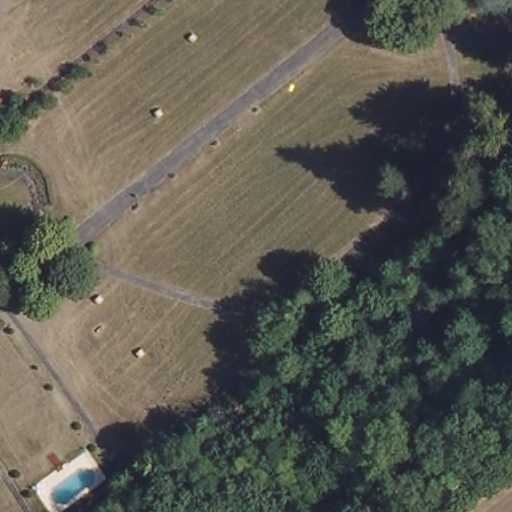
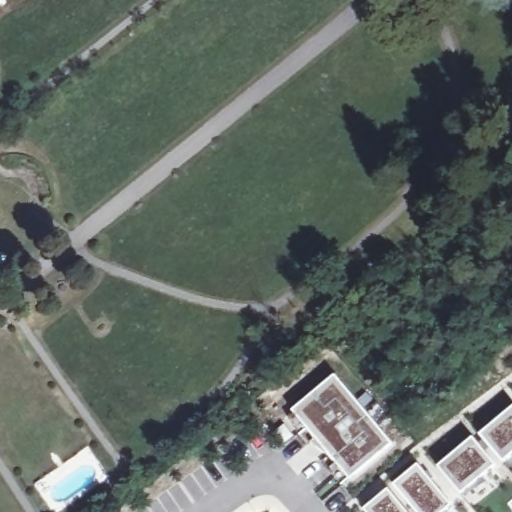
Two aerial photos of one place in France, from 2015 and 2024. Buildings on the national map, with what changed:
new [(352,480),(292,414),(332,377),(392,443),(352,480)]
new [(512,455),(503,463),(480,435),(512,409),(512,455)]
new [(473,438),(497,466),(462,495),(438,467),(473,438)]
new [(394,484),(418,465),(452,506),(445,512),(418,512),(394,484)]
new [(389,490),(408,512),(367,512),(365,510),(389,490)]
new [(512,501),(512,507),(509,504),(512,501)]

